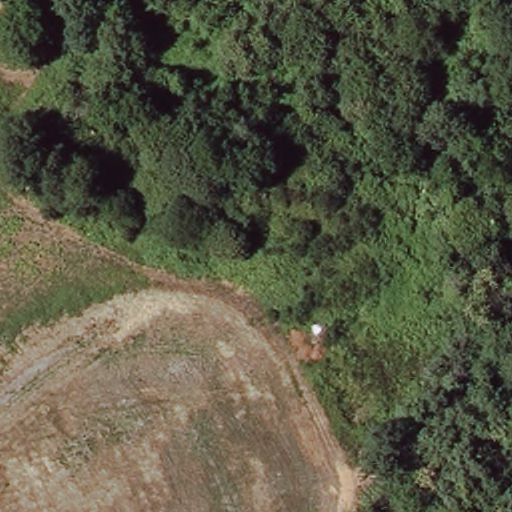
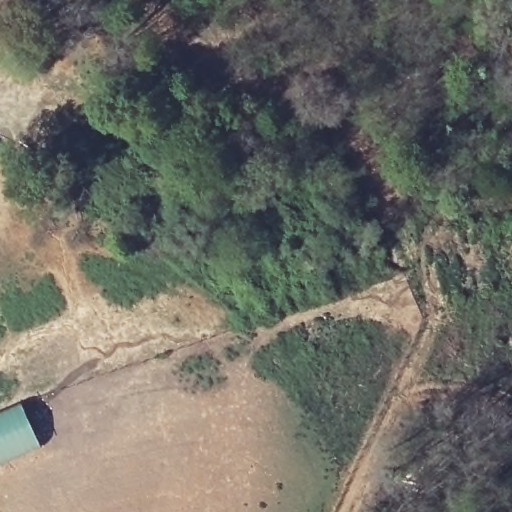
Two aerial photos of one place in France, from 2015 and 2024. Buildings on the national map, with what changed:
new [(20,402),(39,446),(0,463),(0,411),(20,402)]

